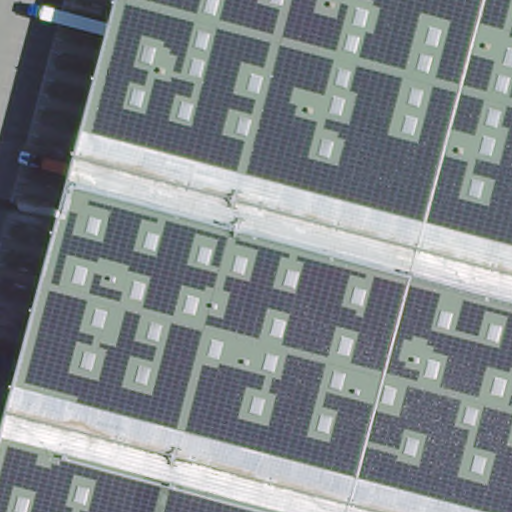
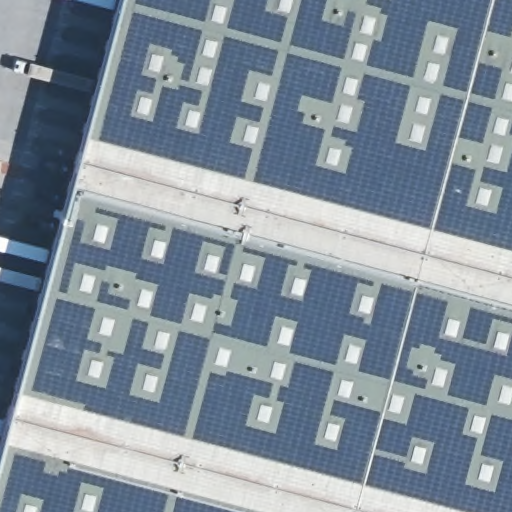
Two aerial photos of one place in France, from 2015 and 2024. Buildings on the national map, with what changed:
unchanged [(110,0),(512,0),(512,512),(0,512),(0,413),(110,0)]

